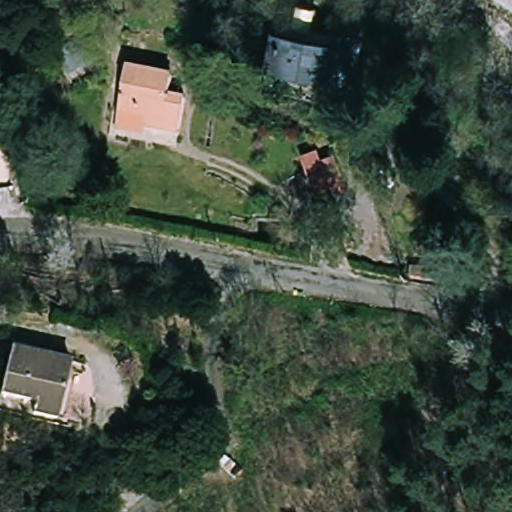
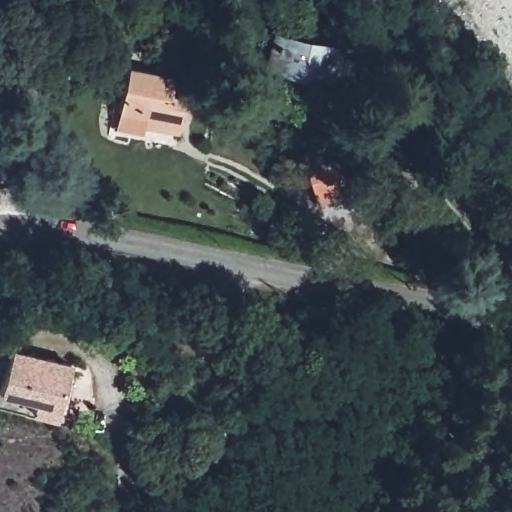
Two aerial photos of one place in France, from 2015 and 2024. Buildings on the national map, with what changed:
unchanged [(331,37),(325,77),(271,67),(276,30),(331,37)]
unchanged [(99,52),(107,74),(66,91),(57,69),(99,52)]
unchanged [(128,85),(172,97),(168,116),(183,122),(175,152),(144,142),(145,134),(117,126),(128,85)]
unchanged [(323,156),(326,165),(340,161),(349,188),(346,194),(318,201),(305,162),(323,156)]
unchanged [(12,351),(70,363),(59,421),(37,417),(39,405),(4,395),(12,351)]

